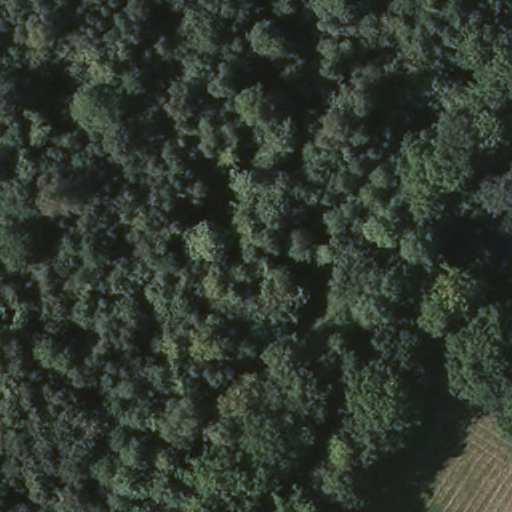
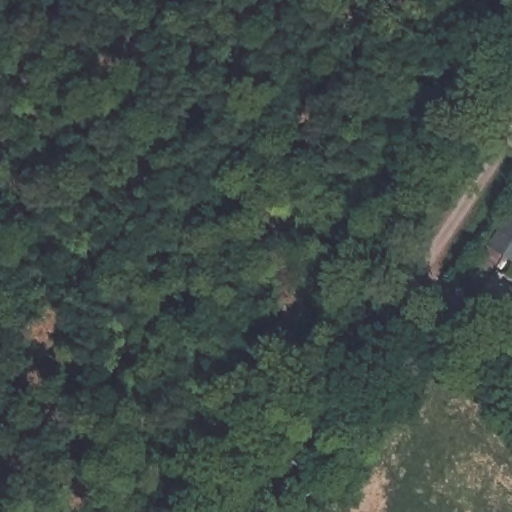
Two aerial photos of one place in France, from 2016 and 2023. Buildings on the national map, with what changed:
new [(510,267),(488,253),(512,215),(512,265),(510,267)]

